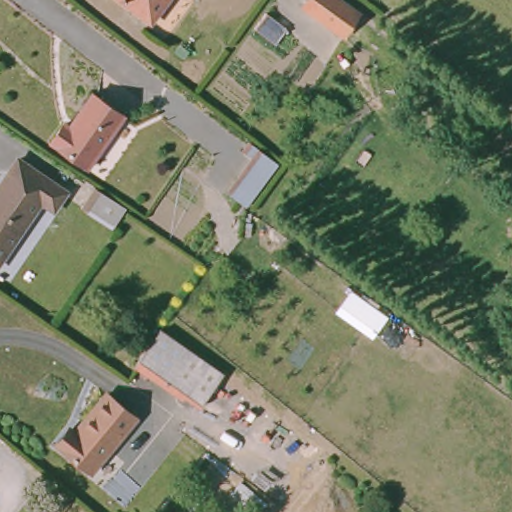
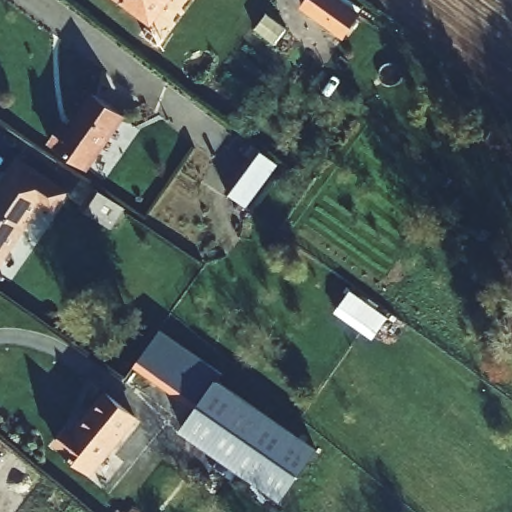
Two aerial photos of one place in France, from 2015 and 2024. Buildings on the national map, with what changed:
unchanged [(118,0),(165,0),(147,24),(118,0)]
unchanged [(340,39),(299,10),(306,0),(338,0),(357,14),(340,39)]
unchanged [(64,122),(71,126),(84,104),(89,95),(123,116),(116,126),(90,169),(50,143),(64,122)]
unchanged [(248,202),(224,188),(247,142),(271,159),(248,202)]
unchanged [(63,192),(51,213),(38,204),(0,265),(0,183),(14,159),(63,192)]
unchanged [(123,203),(112,223),(81,205),(92,184),(123,203)]
new [(335,312),(351,289),(389,316),(373,339),(335,312)]
unchanged [(164,335),(223,376),(198,411),(143,372),(133,365),(156,329),(164,335)]
new [(281,500),(183,433),(198,411),(220,381),(318,449),(281,500)]
unchanged [(135,421),(90,477),(59,451),(104,395),(135,421)]

